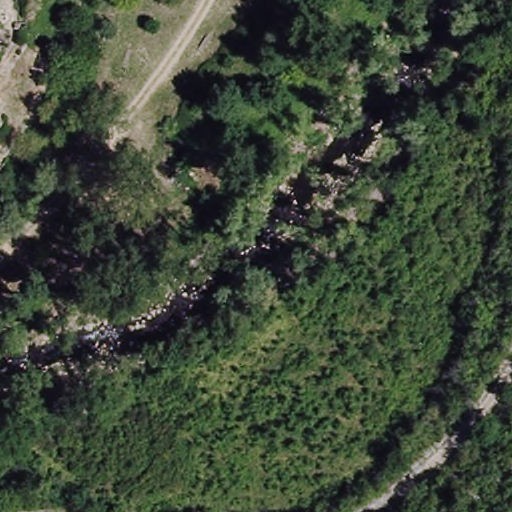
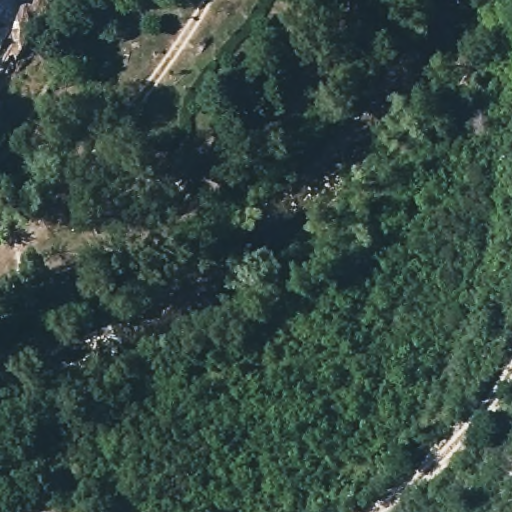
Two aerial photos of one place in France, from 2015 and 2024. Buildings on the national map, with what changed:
unchanged [(0,205),(0,197),(5,199),(0,205)]

